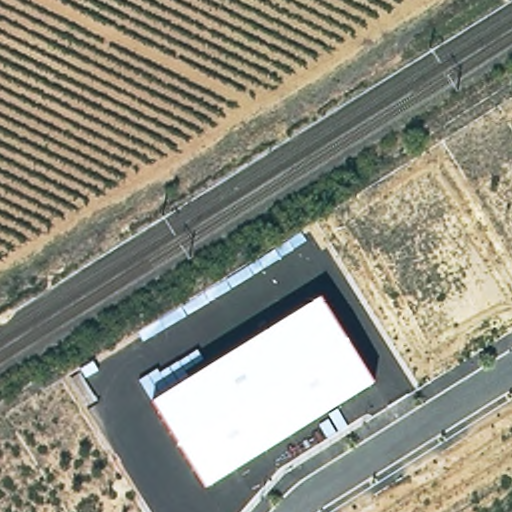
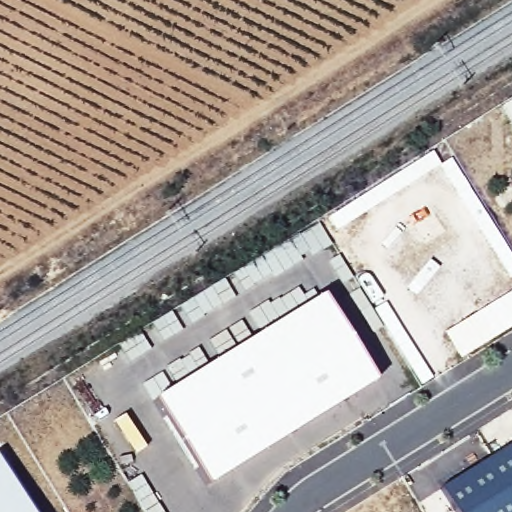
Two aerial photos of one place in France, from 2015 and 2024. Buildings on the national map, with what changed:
unchanged [(319,298),(373,384),(208,487),(155,401),(319,298)]
new [(512,443),(512,512),(454,512),(439,488),(512,443)]
new [(33,512),(0,512),(0,460),(33,512)]

